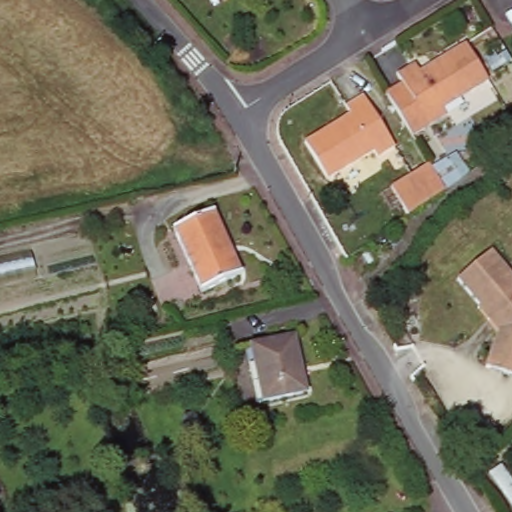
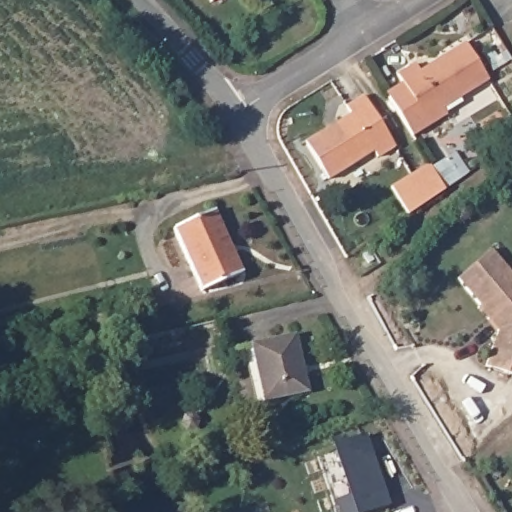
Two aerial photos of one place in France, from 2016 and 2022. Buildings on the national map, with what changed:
unchanged [(209,0),(211,0),(209,1),(209,0)]
unchanged [(415,66),(420,73),(466,44),(489,81),(443,110),(448,117),(431,128),(398,77),(415,66)]
unchanged [(345,108),(362,97),(394,148),(377,159),(374,152),(327,182),(303,145),(350,116),(345,108)]
unchanged [(436,168),(452,159),(465,180),(450,190),(413,215),(397,189),(434,165),(436,168)]
unchanged [(219,214),(241,273),(200,287),(179,229),(219,214)]
unchanged [(368,251),(375,260),(370,263),(363,254),(368,251)]
unchanged [(457,282),(491,252),(512,276),(512,379),(487,371),(499,337),(478,312),(481,310),(457,282)]
unchanged [(294,340),(305,396),(262,403),(251,347),(294,340)]
new [(372,512),(339,512),(334,501),(347,496),(332,446),(368,436),(391,506),(372,512)]

